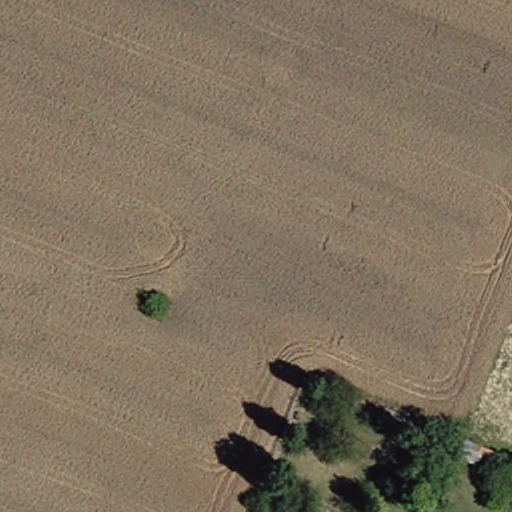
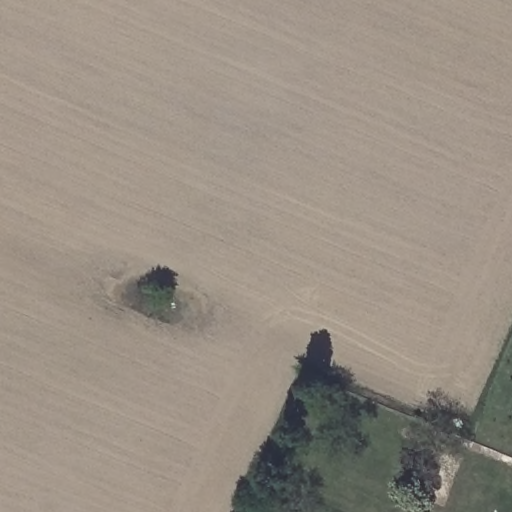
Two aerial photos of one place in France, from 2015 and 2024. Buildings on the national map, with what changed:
unchanged [(470,462),(474,451),(512,467),(507,478),(470,462)]

